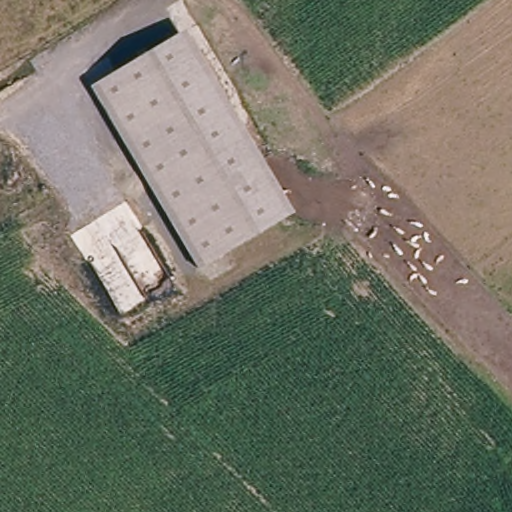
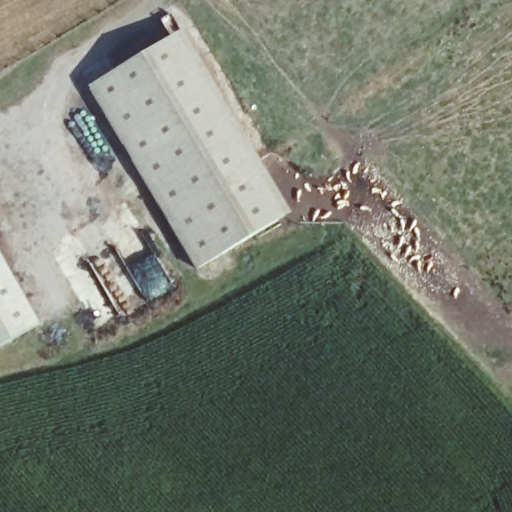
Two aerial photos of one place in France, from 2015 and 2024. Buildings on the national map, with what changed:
unchanged [(180,30),(260,164),(288,212),(277,218),(249,170),(170,37),(180,30)]
unchanged [(88,85),(170,37),(249,170),(277,218),(196,267),(165,215),(88,85)]
new [(0,351),(0,252),(41,329),(0,351)]

